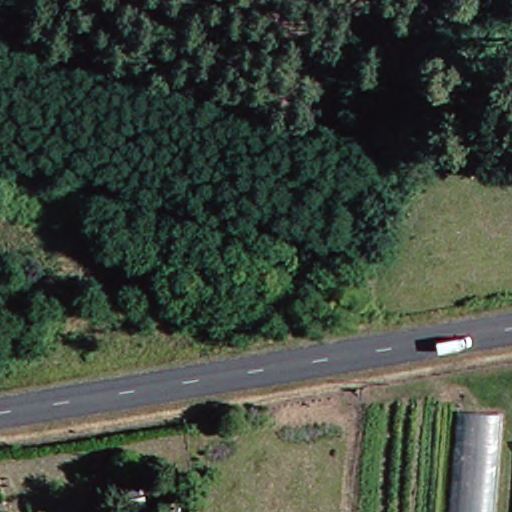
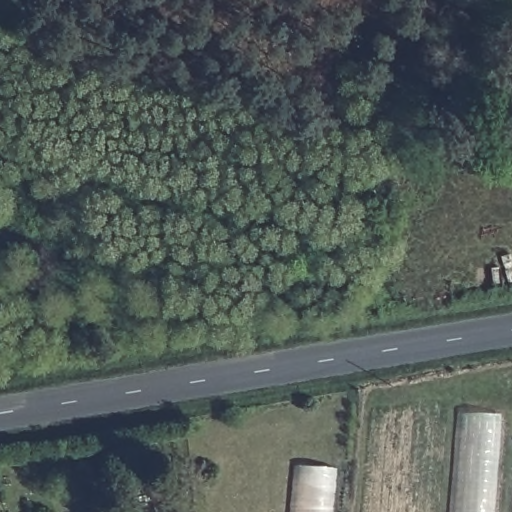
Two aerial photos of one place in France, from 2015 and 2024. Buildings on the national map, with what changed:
unchanged [(509,413),(502,512),(450,512),(458,411),(509,413)]
new [(334,512),(287,512),(292,464),(338,469),(334,512)]

